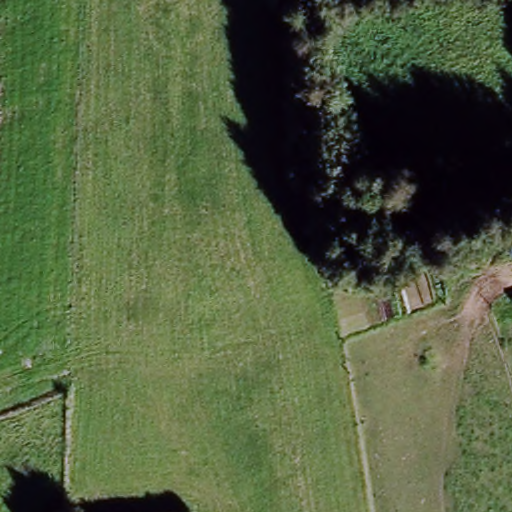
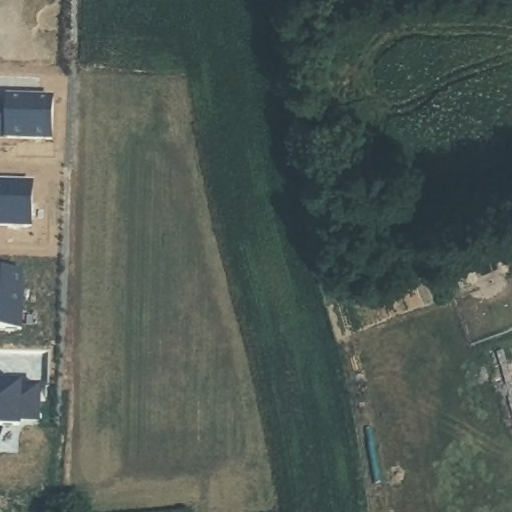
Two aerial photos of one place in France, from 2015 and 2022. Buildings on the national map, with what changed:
new [(8,98),(54,100),(52,140),(0,139),(0,103),(8,104),(8,98)]
new [(31,227),(0,226),(0,183),(33,184),(31,227)]
new [(21,330),(0,330),(0,272),(24,272),(21,330)]
new [(39,422),(20,421),(20,427),(0,427),(0,385),(40,386),(39,422)]

